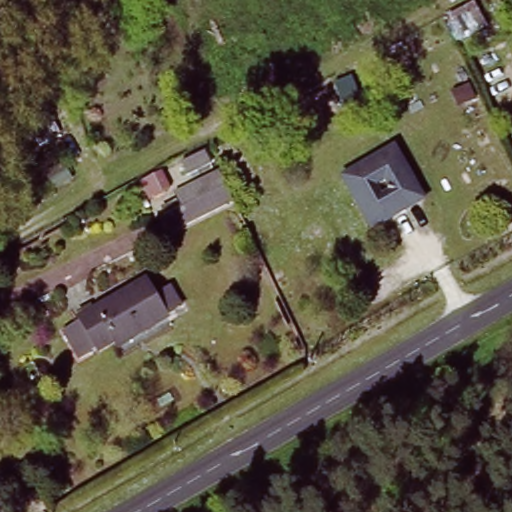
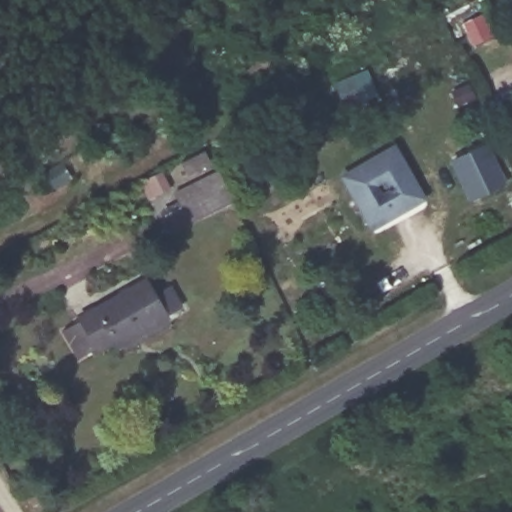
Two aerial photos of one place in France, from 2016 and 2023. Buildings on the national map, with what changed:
new [(505,186),(475,200),(455,160),(485,146),(505,186)]
unchanged [(344,172),(389,147),(419,193),(371,221),(344,172)]
unchanged [(170,233),(161,218),(180,207),(171,192),(214,167),(231,200),(170,233)]
unchanged [(163,314),(142,327),(138,322),(78,357),(60,328),(140,278),(163,314)]

